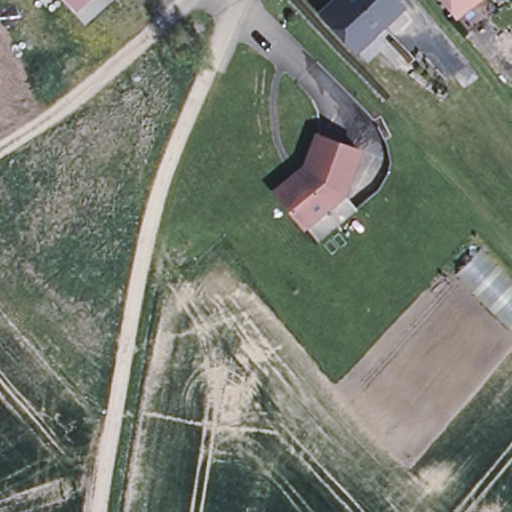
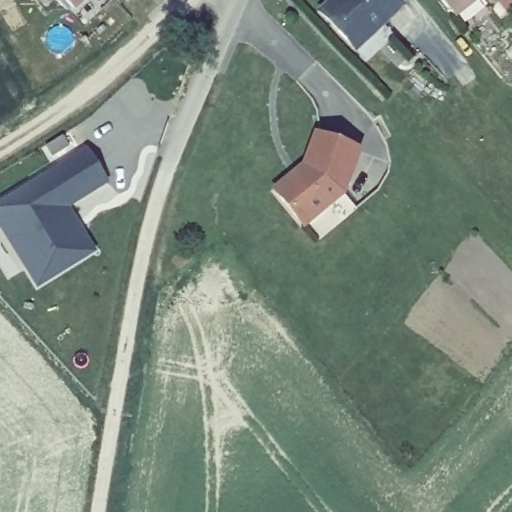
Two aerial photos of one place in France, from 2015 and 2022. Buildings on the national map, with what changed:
unchanged [(75,4),(71,7),(66,7),(60,0),(79,0),(75,4)]
unchanged [(405,4),(386,22),(396,34),(370,60),(323,11),(335,0),(401,0),(405,4)]
unchanged [(457,15),(445,0),(476,0),(457,15)]
unchanged [(345,191),(357,206),(318,239),(276,188),(306,163),(318,133),(319,131),(360,147),(351,171),(345,191)]
new [(110,186),(71,208),(97,252),(36,289),(0,231),(0,202),(86,148),(110,186)]

